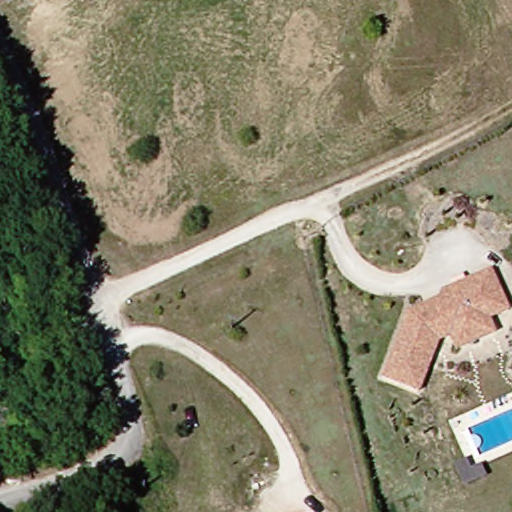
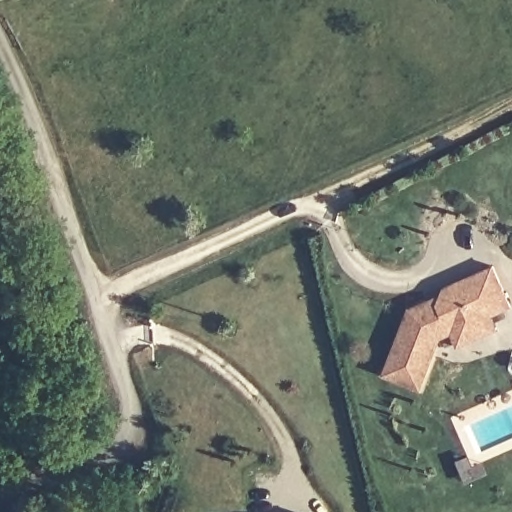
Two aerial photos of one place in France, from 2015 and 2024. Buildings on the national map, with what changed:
unchanged [(406,307),(491,270),(506,310),(488,319),(493,331),(454,349),(447,334),(434,340),(418,388),(381,374),(406,307)]

